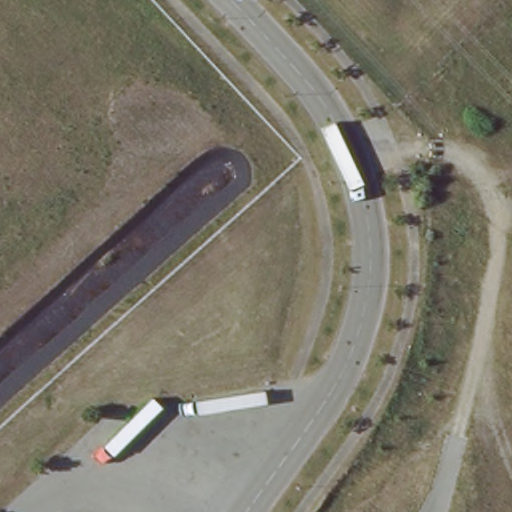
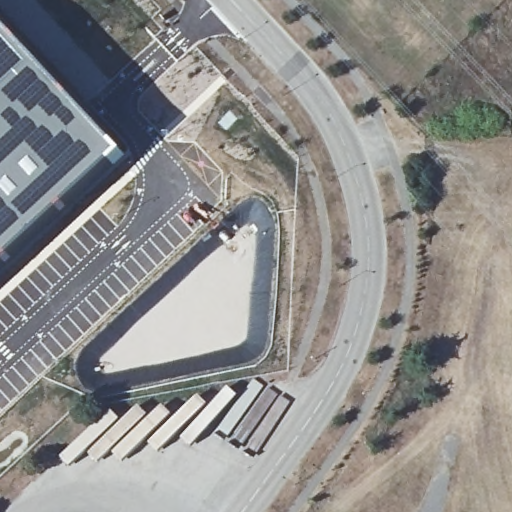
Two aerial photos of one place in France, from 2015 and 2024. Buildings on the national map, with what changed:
new [(15,251),(0,265),(0,22),(125,155),(15,251)]

